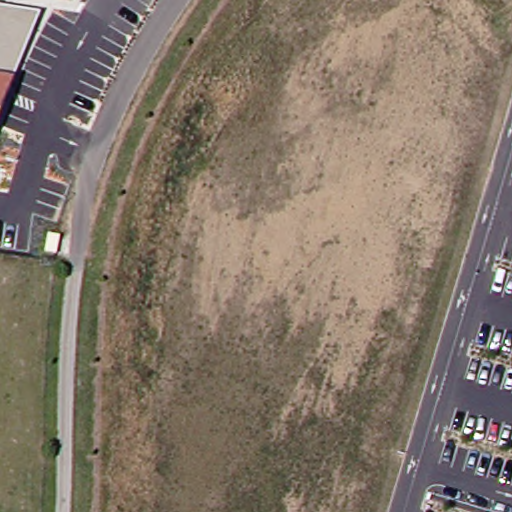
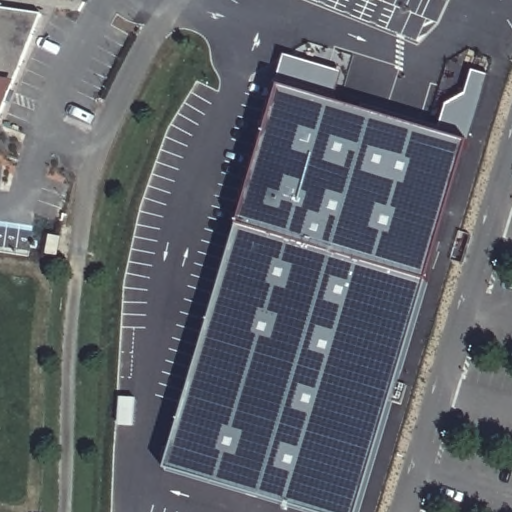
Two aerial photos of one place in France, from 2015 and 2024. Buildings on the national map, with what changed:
new [(41,14),(15,82),(0,116),(0,8),(41,14)]
new [(342,73),(333,103),(279,87),(275,86),(285,55),(342,73)]
new [(438,134),(446,106),(466,95),(472,71),(488,75),(468,143),(438,134)]
new [(279,87),(333,103),(438,134),(468,143),(427,280),(358,512),(305,512),(165,470),(238,224),(279,87)]

